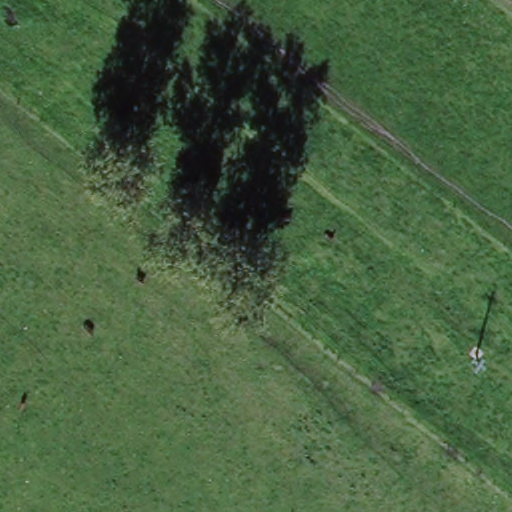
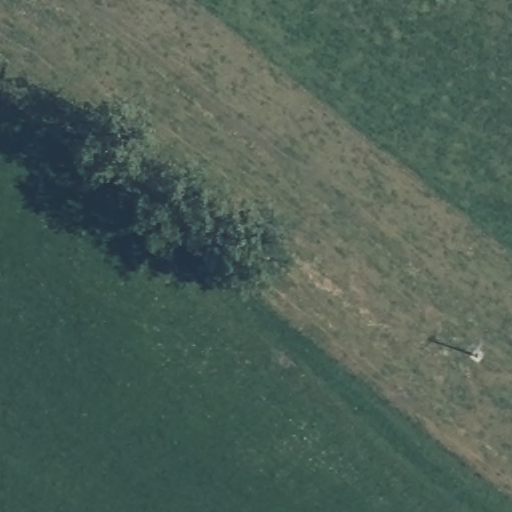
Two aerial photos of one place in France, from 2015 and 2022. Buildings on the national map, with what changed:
[]

